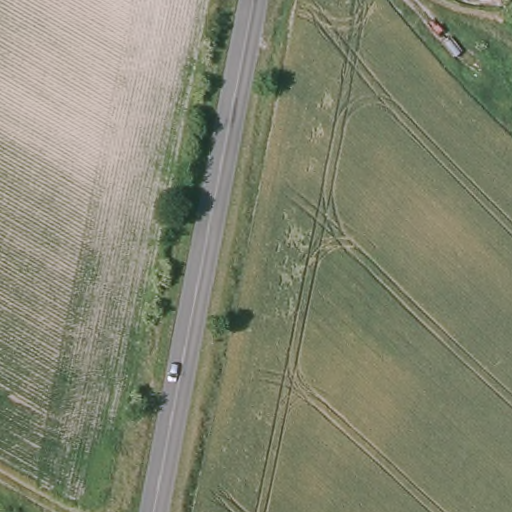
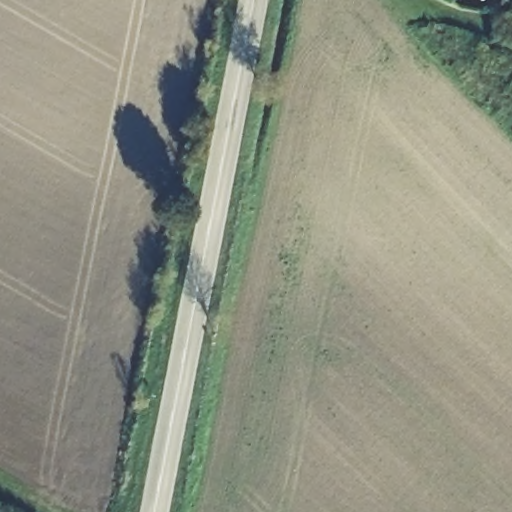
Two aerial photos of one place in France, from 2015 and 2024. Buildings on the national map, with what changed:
[]

